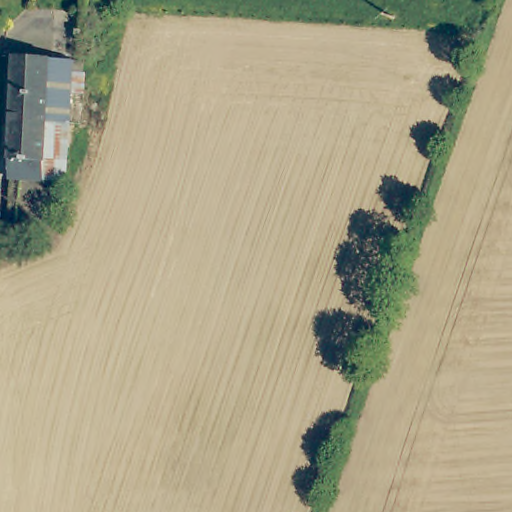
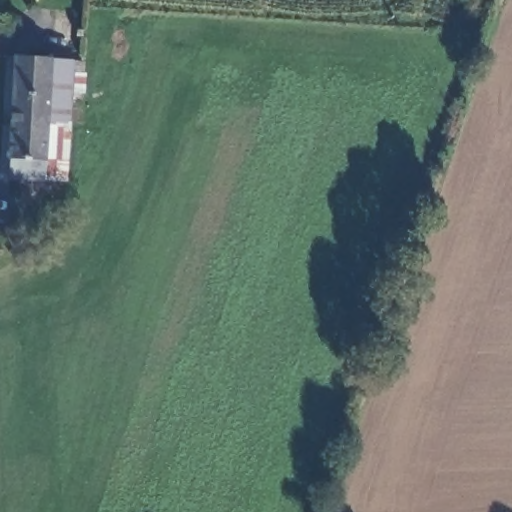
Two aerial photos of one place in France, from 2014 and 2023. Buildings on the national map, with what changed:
unchanged [(52,121),(52,124),(16,122),(26,49),(59,54),(52,121)]
unchanged [(59,54),(77,55),(68,121),(52,121),(59,54)]
unchanged [(52,124),(51,145),(45,144),(40,177),(10,174),(16,122),(52,124)]

